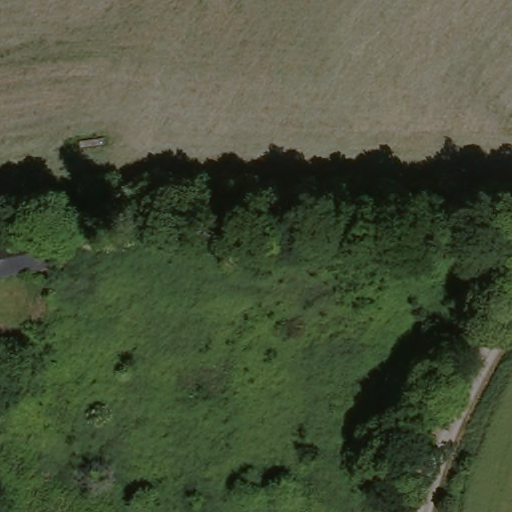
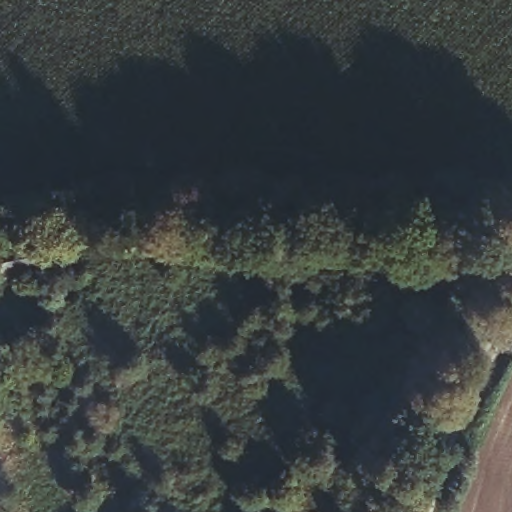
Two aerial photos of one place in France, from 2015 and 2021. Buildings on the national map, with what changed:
unchanged [(46,233),(51,270),(0,281),(0,243),(35,236),(46,233)]

